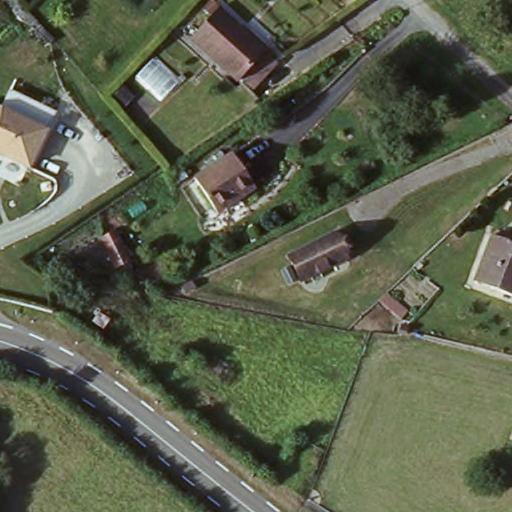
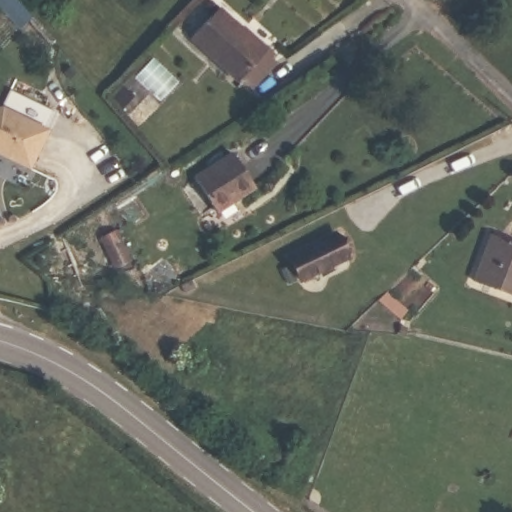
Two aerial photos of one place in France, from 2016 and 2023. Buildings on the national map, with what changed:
unchanged [(245,93),(232,80),(187,39),(214,7),(263,47),(273,62),(245,93)]
unchanged [(0,106),(46,128),(30,169),(0,154),(0,106)]
unchanged [(195,170),(236,151),(255,191),(215,211),(195,170)]
unchanged [(333,226),(346,252),(301,277),(286,252),(333,226)]
unchanged [(93,238),(115,229),(127,260),(105,267),(93,238)]
unchanged [(512,240),(512,293),(478,281),(492,234),(512,240)]
unchanged [(88,307),(110,321),(103,331),(82,317),(88,307)]

